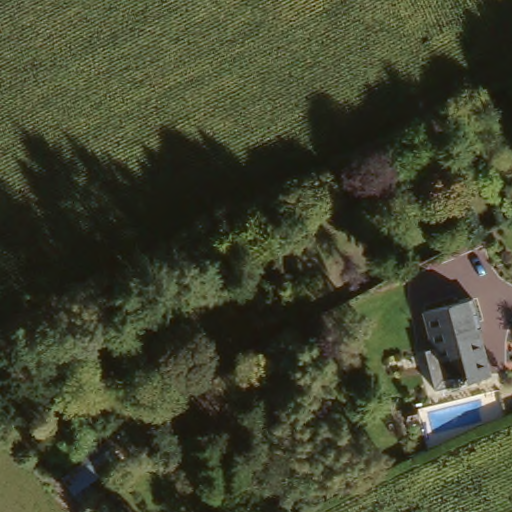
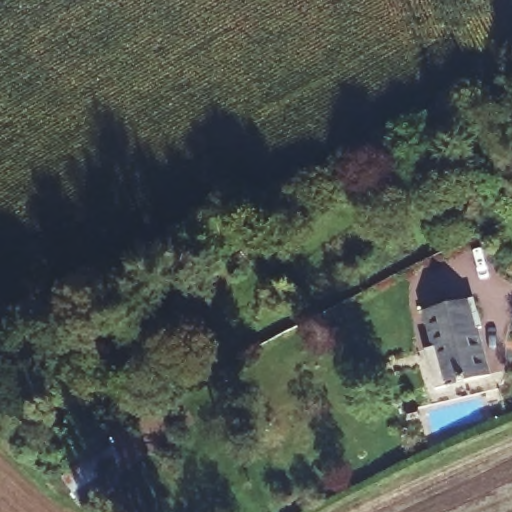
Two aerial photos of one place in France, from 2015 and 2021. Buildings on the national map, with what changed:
unchanged [(442,341),(433,307),(484,294),(491,321),(481,323),(494,373),(441,385),(434,360),(431,343),(442,341)]

